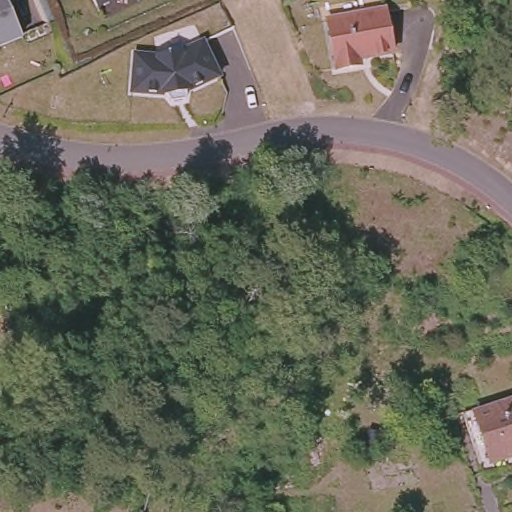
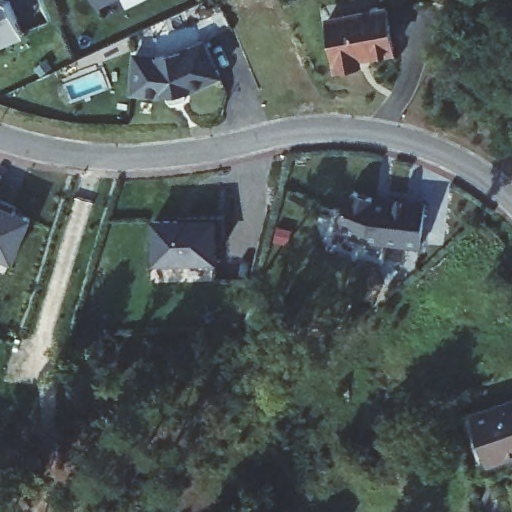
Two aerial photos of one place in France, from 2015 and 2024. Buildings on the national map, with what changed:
unchanged [(96,7),(92,0),(111,0),(96,7)]
unchanged [(0,45),(0,2),(8,6),(16,24),(21,36),(0,45)]
unchanged [(397,48),(363,54),(364,61),(340,65),(331,17),(390,6),(397,48)]
unchanged [(202,42),(219,76),(189,90),(185,91),(187,95),(185,100),(171,102),(168,99),(167,94),(164,95),(132,92),(135,55),(157,57),(182,52),(202,42)]
new [(350,190),(375,199),(426,204),(421,247),(365,241),(335,229),(350,190)]
new [(30,219),(12,263),(0,258),(0,207),(30,219)]
new [(154,238),(154,221),(179,221),(179,217),(224,216),(225,237),(214,238),(215,260),(180,261),(180,266),(150,266),(149,238),(154,238)]
new [(264,320),(260,319),(247,316),(251,298),(264,301),(269,302),(264,320)]
unchanged [(467,413),(476,411),(477,414),(512,403),(512,456),(492,462),(495,470),(485,473),(467,413)]

